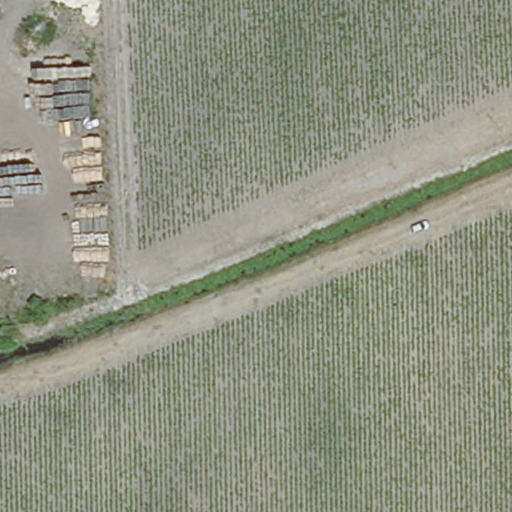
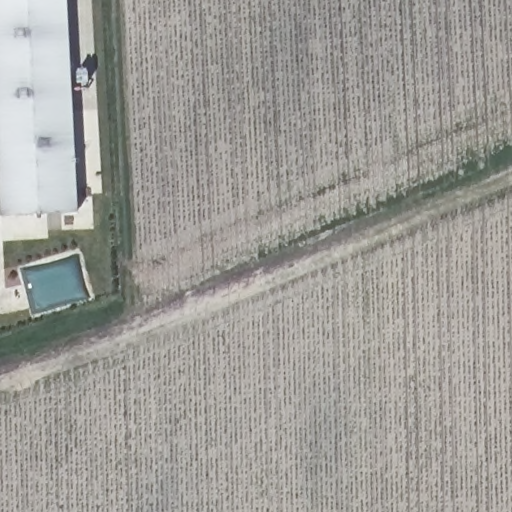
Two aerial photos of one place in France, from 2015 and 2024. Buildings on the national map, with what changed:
new [(82,210),(2,217),(1,169),(0,169),(0,0),(70,0),(82,210)]

